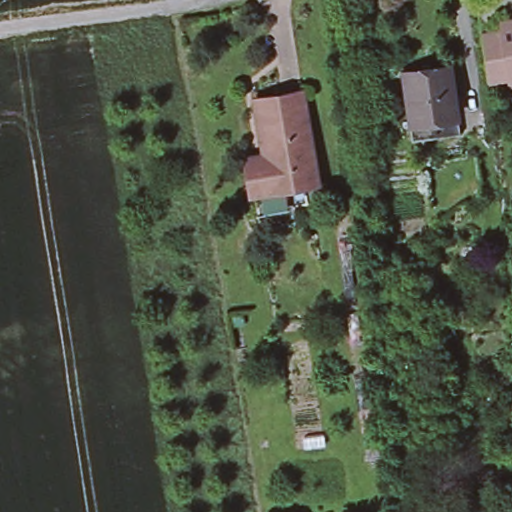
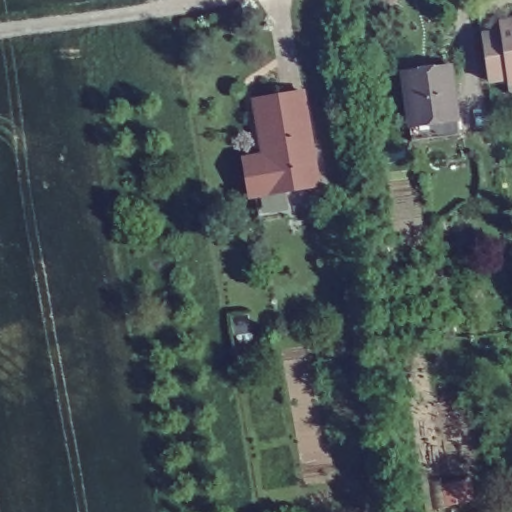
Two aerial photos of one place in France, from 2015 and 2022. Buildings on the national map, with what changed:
unchanged [(497,25),(495,19),(507,17),(512,17),(512,80),(503,81),(502,75),(485,77),(478,31),(497,29),(497,25)]
unchanged [(400,69),(420,66),(426,65),(430,65),(448,62),(455,112),(457,132),(440,135),(410,139),(407,118),(400,69)]
unchanged [(273,97),(300,93),(315,185),(288,190),(273,97)]
unchanged [(261,154),(252,101),(273,97),(288,190),(247,196),(242,171),(240,158),(261,154)]

